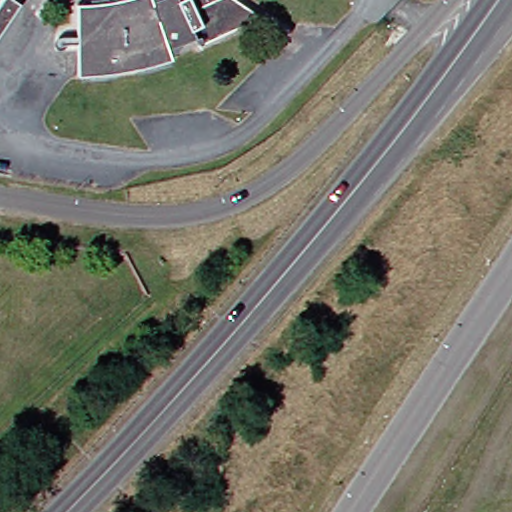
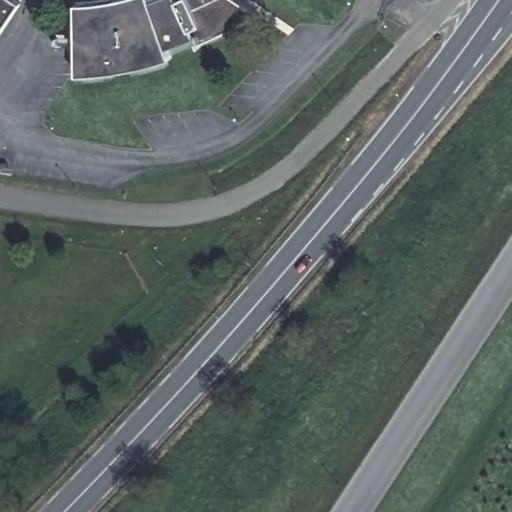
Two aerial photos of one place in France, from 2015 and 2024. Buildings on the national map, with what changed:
unchanged [(0,0),(10,0),(21,9),(0,38),(0,0)]
unchanged [(196,45),(193,39),(183,42),(154,49),(157,61),(151,64),(145,66),(139,68),(133,70),(127,72),(121,73),(115,75),(109,76),(103,77),(97,77),(91,78),(84,78),(78,79),(74,79),(72,7),(76,7),(82,7),(88,7),(94,6),(101,5),(107,4),(113,3),(119,2),(119,0),(230,0),(259,21),(196,45)]

